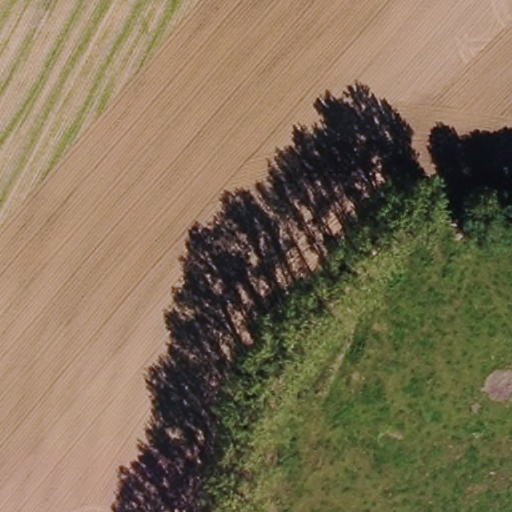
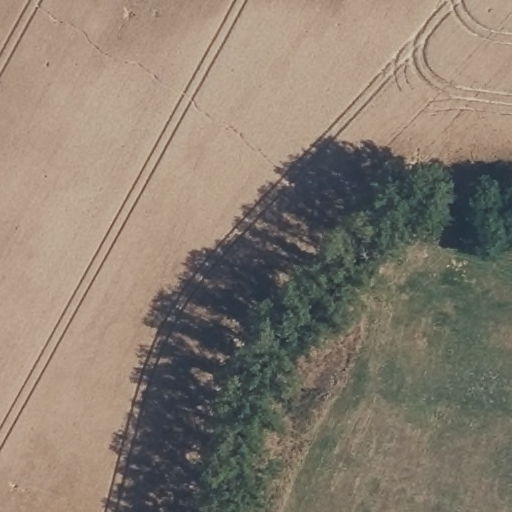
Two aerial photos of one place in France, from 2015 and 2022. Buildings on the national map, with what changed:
[]

